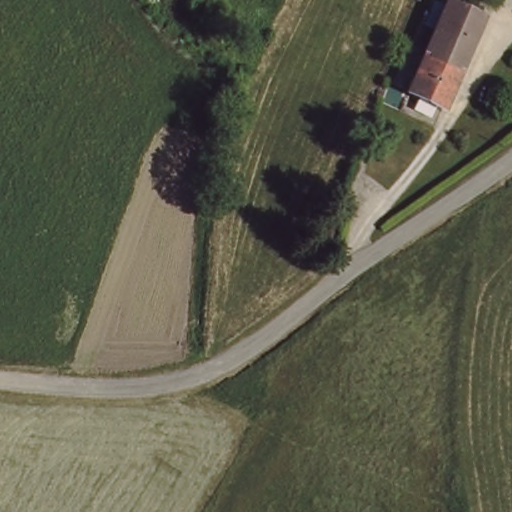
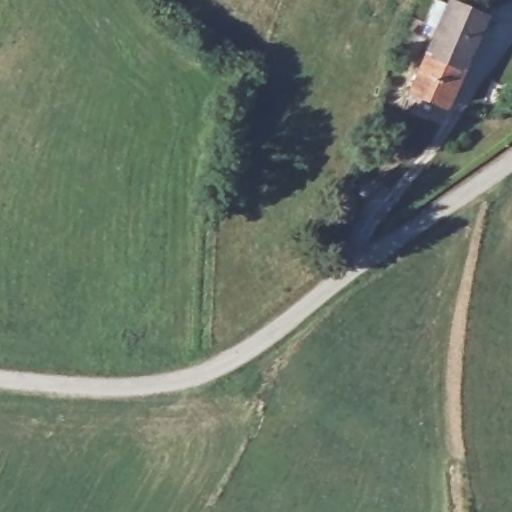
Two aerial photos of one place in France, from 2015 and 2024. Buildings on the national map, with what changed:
unchanged [(482,27),(439,98),(409,82),(454,10),(482,27)]

